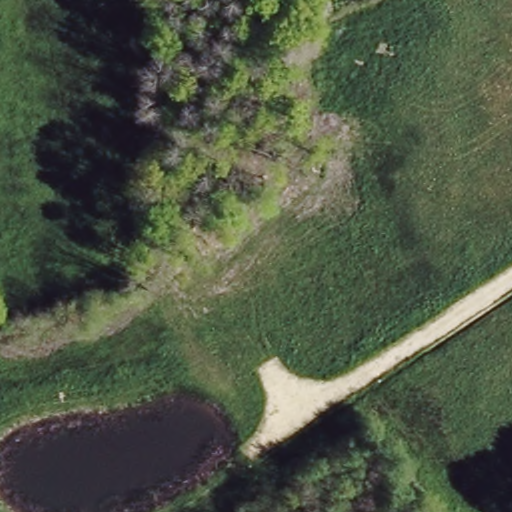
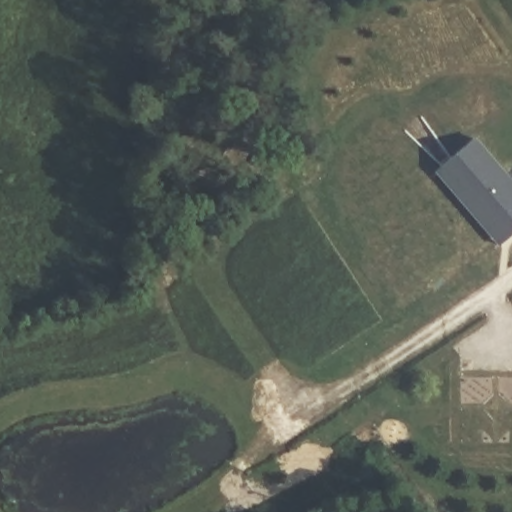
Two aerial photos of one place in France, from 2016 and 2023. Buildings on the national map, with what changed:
new [(497,245),(433,170),(474,138),(512,181),(512,233),(497,245)]

